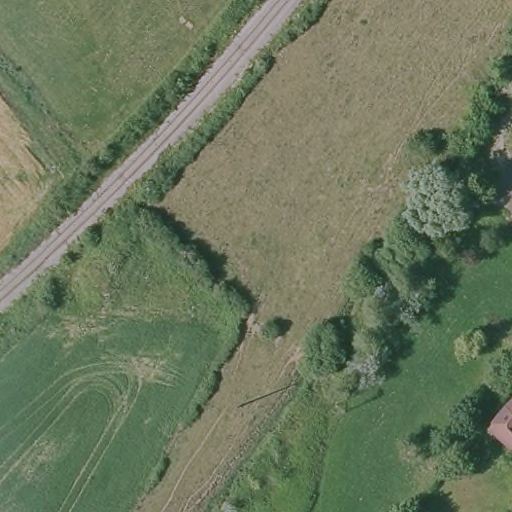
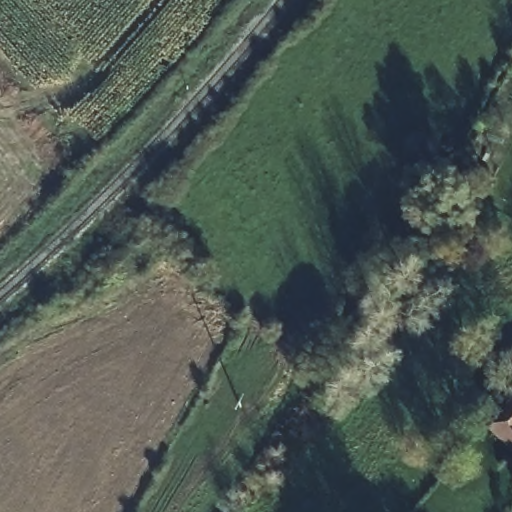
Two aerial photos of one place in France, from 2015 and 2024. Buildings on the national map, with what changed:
unchanged [(493,433),(512,412),(512,451),(493,433)]

